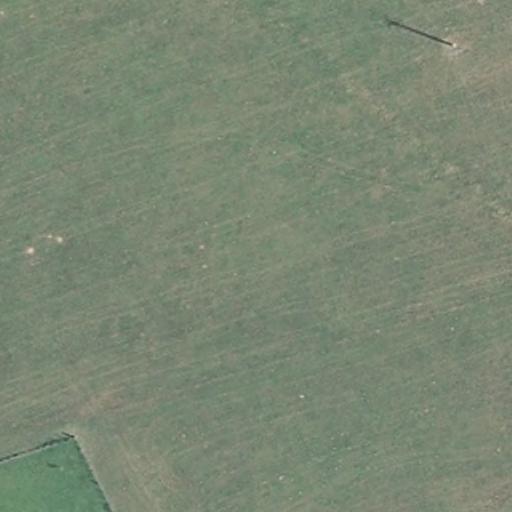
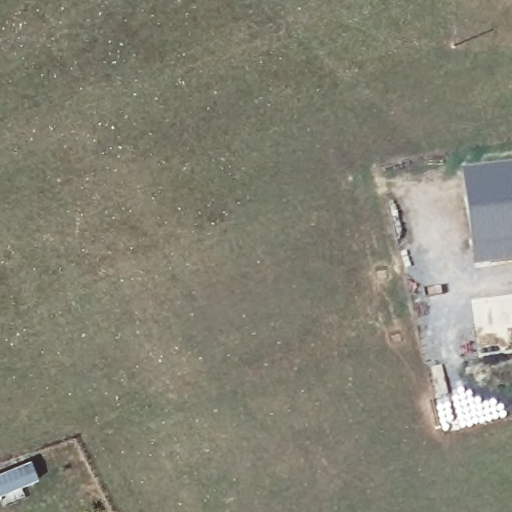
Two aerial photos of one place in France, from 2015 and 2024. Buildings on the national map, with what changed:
new [(474,249),(464,174),(512,168),(512,263),(476,268),(474,249)]

